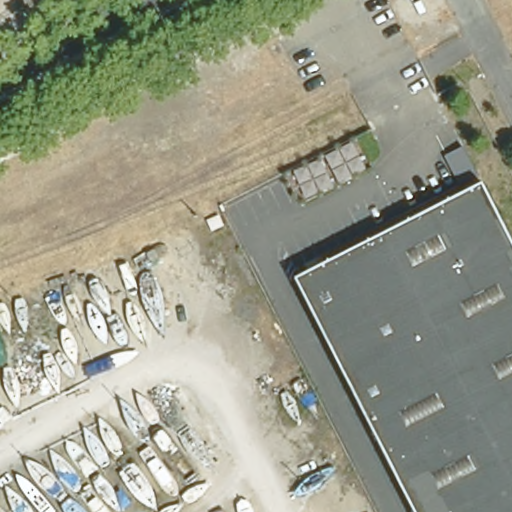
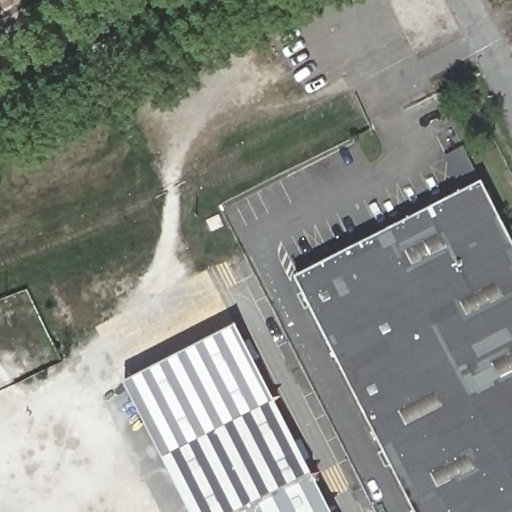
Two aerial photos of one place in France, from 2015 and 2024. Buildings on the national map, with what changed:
unchanged [(512,241),(512,512),(415,512),(295,279),(440,205),(482,184),(512,241)]
new [(236,327),(331,512),(191,512),(126,384),(236,327)]

